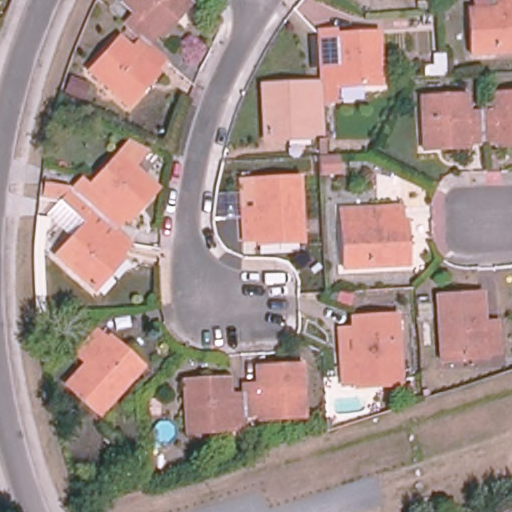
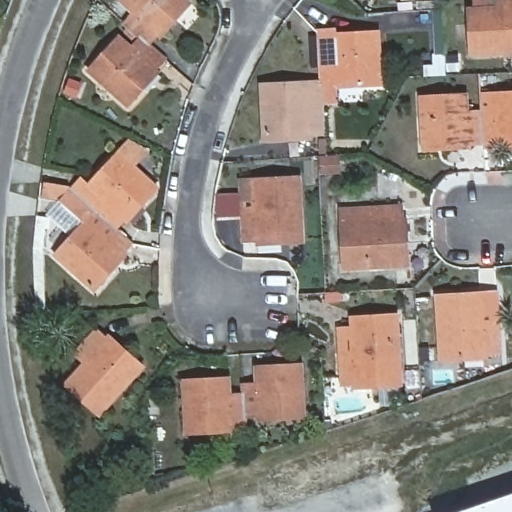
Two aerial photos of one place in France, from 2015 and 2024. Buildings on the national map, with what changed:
unchanged [(164,34),(154,46),(146,39),(130,24),(139,14),(126,2),(128,0),(192,0),(195,3),(180,20),(165,36),(164,34)]
unchanged [(378,2),(378,0),(416,0),(378,2)]
unchanged [(474,14),(502,12),(502,0),(512,0),(512,58),(476,60),(474,14)]
unchanged [(319,26),(335,25),(335,30),(379,27),(381,80),(335,82),(336,97),(322,98),(321,77),(319,26)]
unchanged [(160,70),(164,72),(133,107),(94,71),(125,37),(137,49),(146,39),(154,46),(169,60),(160,70)]
unchanged [(445,74),(426,75),(426,67),(436,66),(435,56),(443,56),(445,74)]
unchanged [(322,98),(323,129),(310,129),(310,134),(263,136),(261,80),(321,77),(322,98)]
unchanged [(487,144),(485,112),(500,111),(498,94),(512,93),(512,146),(502,147),(502,142),(487,144)]
unchanged [(451,149),(428,150),(425,97),(471,96),(472,112),(485,112),(487,144),(472,144),(472,148),(451,149)]
unchanged [(80,178),(89,186),(119,152),(158,188),(127,222),(124,219),(115,230),(70,189),(80,178)]
unchanged [(340,172),(321,174),(320,157),(338,157),(340,172)]
unchanged [(304,242),(257,245),(257,241),(244,242),(242,210),(255,209),(254,180),(300,177),(304,242)]
unchanged [(57,201),(40,197),(42,187),(60,191),(57,201)]
unchanged [(122,254),(125,257),(95,291),(55,255),(85,223),(60,200),(70,189),(115,230),(130,244),(122,254)]
unchanged [(408,266),(343,269),(341,210),(401,207),(402,221),(406,221),(408,266)]
unchanged [(49,228),(37,227),(38,216),(50,217),(49,228)]
unchanged [(318,287),(305,288),(304,277),(317,277),(318,287)]
unchanged [(463,359),(440,361),(437,296),(483,293),(485,322),(498,322),(500,353),(485,354),(485,358),(463,359)]
unchanged [(430,317),(418,317),(418,305),(430,305),(430,317)]
unchanged [(357,384),(342,385),(340,356),(338,329),(352,328),(352,318),(397,316),(401,385),(379,387),(357,388),(357,384)]
unchanged [(148,367),(105,415),(71,385),(90,363),(80,354),(101,330),(111,339),(114,337),(148,367)]
unchanged [(260,421),(245,422),(244,400),(244,390),(257,390),(256,372),(302,371),(305,422),(281,424),(260,425),(260,421)]
unchanged [(209,437),(186,438),(184,386),(230,384),(230,400),(244,400),(245,422),(245,432),(230,432),(230,437),(209,437)]
new [(512,512),(456,512),(512,493),(512,512)]

